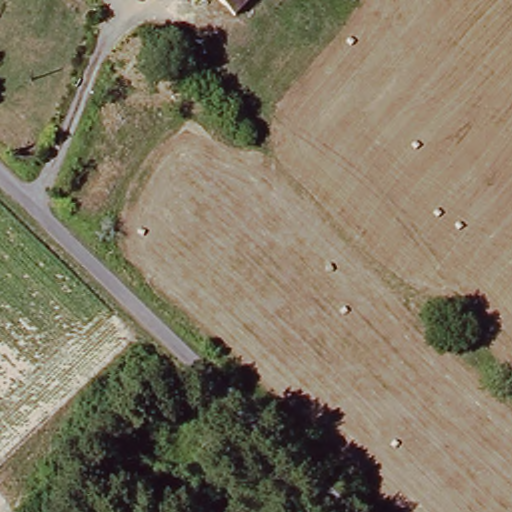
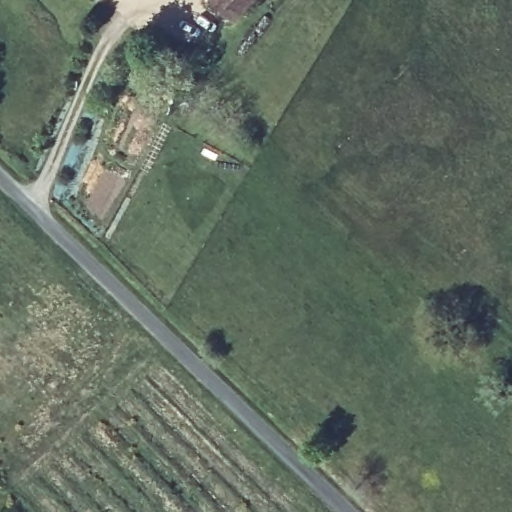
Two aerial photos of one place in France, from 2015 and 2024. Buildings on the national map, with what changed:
unchanged [(211,0),(263,0),(242,23),(248,28),(230,48),(196,16),(211,0)]

